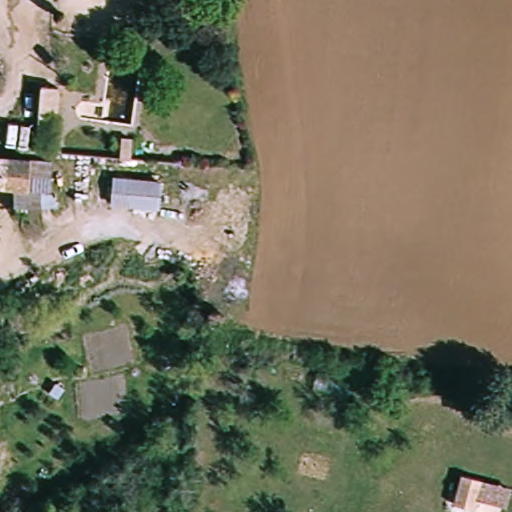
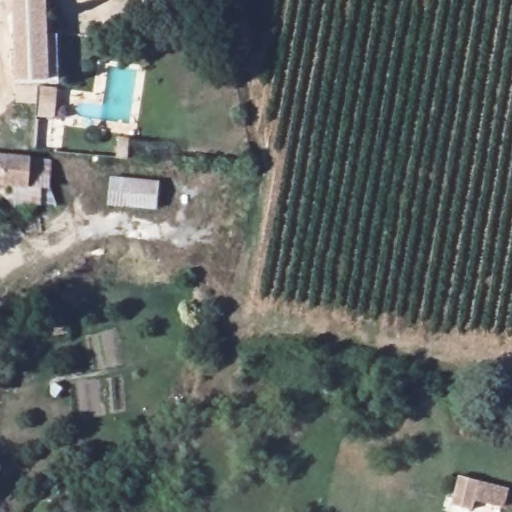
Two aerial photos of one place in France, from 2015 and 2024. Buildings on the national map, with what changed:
new [(50,80),(19,81),(16,0),(47,0),(50,80)]
unchanged [(58,118),(36,119),(38,85),(59,86),(58,118)]
unchanged [(132,159),(117,157),(119,135),(133,137),(132,159)]
unchanged [(54,190),(51,193),(48,194),(44,192),(41,207),(29,207),(28,213),(18,212),(20,187),(0,186),(0,156),(56,164),(54,190)]
unchanged [(111,177),(159,181),(157,212),(108,206),(111,177)]
unchanged [(0,393),(0,369),(12,367),(15,391),(0,393)]
unchanged [(459,474),(512,487),(504,510),(475,500),(473,510),(448,505),(459,474)]

